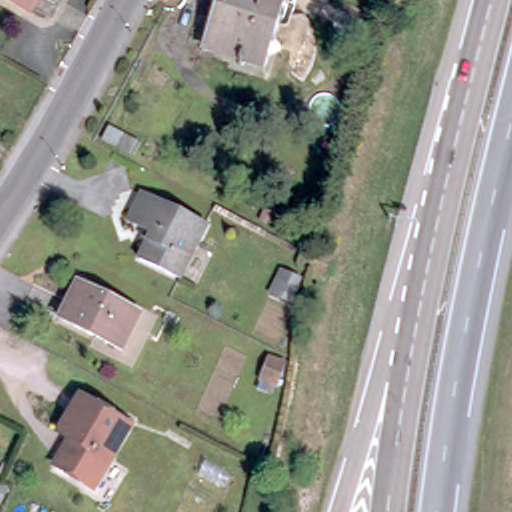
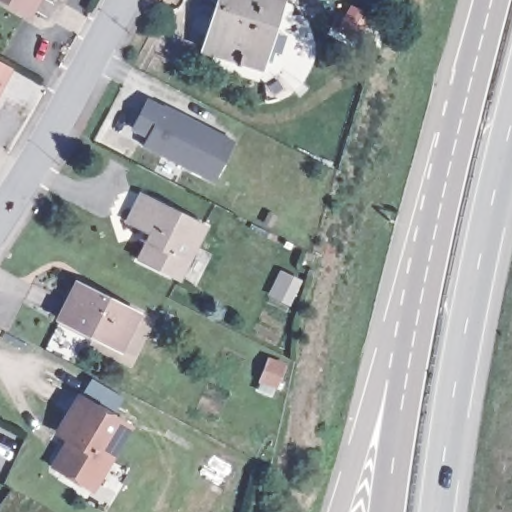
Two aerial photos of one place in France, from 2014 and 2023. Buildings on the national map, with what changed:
unchanged [(10,0),(26,0),(22,8),(10,0)]
unchanged [(216,0),(266,0),(271,1),(272,0),(282,0),(288,1),(281,24),(266,19),(253,60),(202,46),(216,0)]
new [(3,68),(0,72),(0,67),(3,68)]
new [(237,140),(216,182),(143,144),(146,138),(131,129),(148,96),(237,140)]
unchanged [(151,238),(127,224),(141,195),(207,226),(191,258),(151,238)]
unchanged [(151,238),(191,258),(180,279),(139,260),(151,238)]
unchanged [(276,294),(260,287),(269,264),(285,270),(276,294)]
unchanged [(136,311),(118,348),(58,317),(76,280),(136,311)]
unchanged [(255,354),(245,376),(231,369),(241,348),(255,354)]
unchanged [(94,491),(59,474),(73,446),(58,439),(76,400),(127,425),(94,491)]

